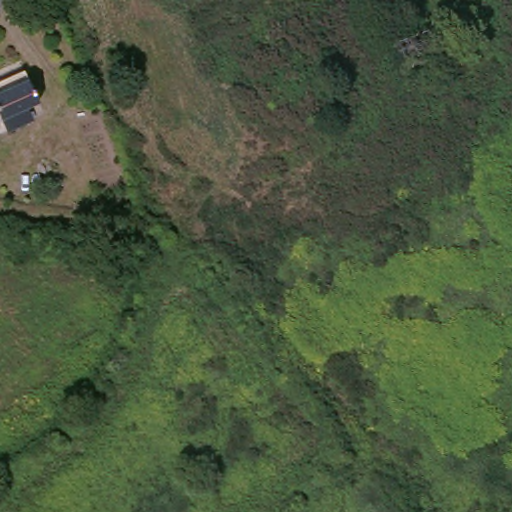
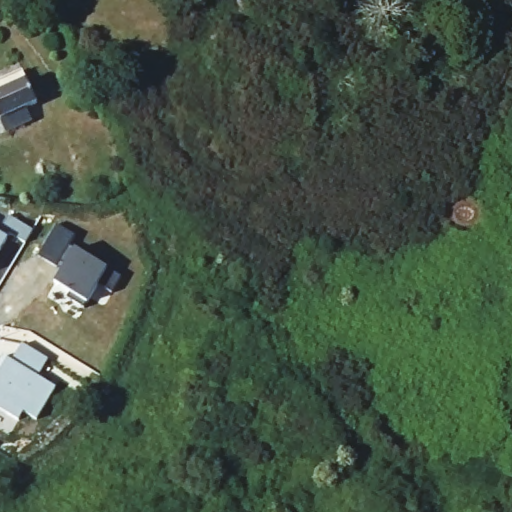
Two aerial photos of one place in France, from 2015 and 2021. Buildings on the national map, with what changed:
unchanged [(0,123),(0,91),(19,83),(32,110),(0,123)]
new [(9,214),(32,230),(22,249),(10,240),(0,255),(0,226),(9,214)]
new [(80,233),(72,247),(76,249),(108,268),(121,278),(113,292),(100,280),(87,302),(55,282),(64,267),(40,254),(59,222),(80,233)]
new [(49,358),(39,375),(57,386),(40,418),(25,411),(20,419),(0,408),(0,358),(2,354),(7,357),(12,359),(22,343),(49,358)]

